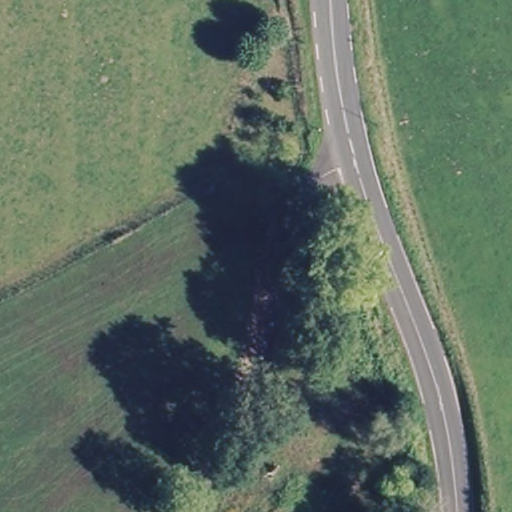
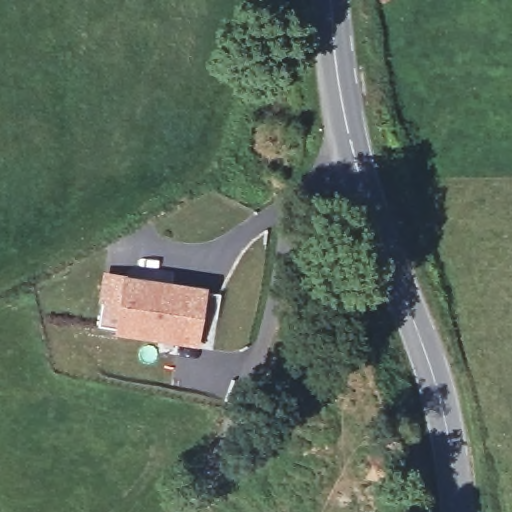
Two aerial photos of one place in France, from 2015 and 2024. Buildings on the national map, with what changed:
new [(207,288),(221,293),(216,322),(202,317),(202,333),(191,347),(114,335),(122,275),(207,288)]

